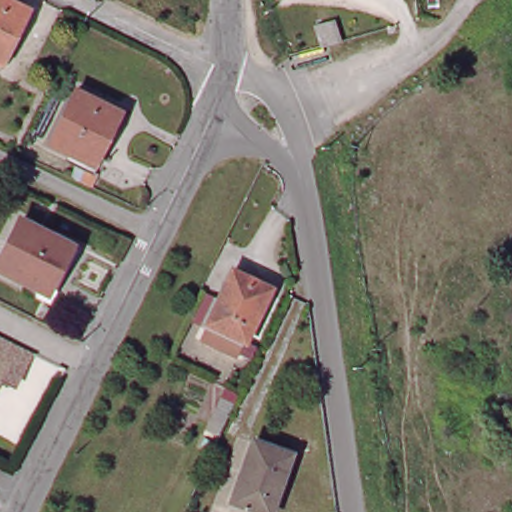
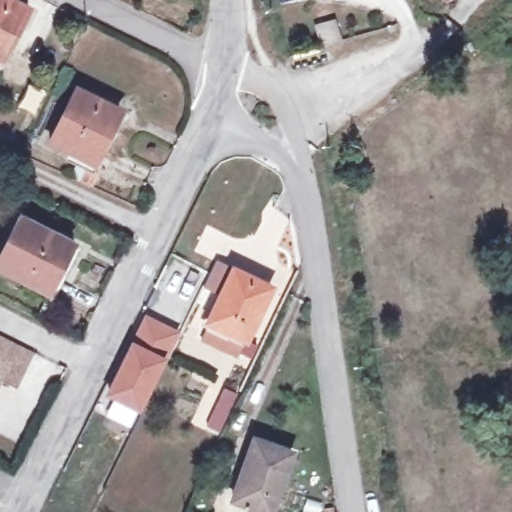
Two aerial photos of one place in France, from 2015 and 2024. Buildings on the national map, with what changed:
unchanged [(32,15),(25,31),(20,30),(3,63),(0,61),(0,0),(3,0),(32,15)]
unchanged [(337,20),(344,40),(325,45),(318,26),(337,20)]
unchanged [(79,90),(122,111),(113,131),(108,130),(92,162),(53,144),(79,90)]
unchanged [(25,219),(75,245),(50,293),(0,268),(25,219)]
unchanged [(200,338),(208,322),(235,270),(270,290),(243,341),(236,356),(200,338)]
new [(144,314),(180,332),(167,360),(149,398),(131,428),(105,415),(112,401),(104,397),(144,314)]
unchanged [(36,355),(17,395),(0,386),(0,380),(9,363),(0,358),(0,338),(36,355)]
unchanged [(9,363),(0,380),(0,358),(9,363)]
new [(223,387),(238,393),(220,432),(205,426),(223,387)]
unchanged [(273,512),(269,512),(237,500),(259,441),(295,455),(273,512)]

